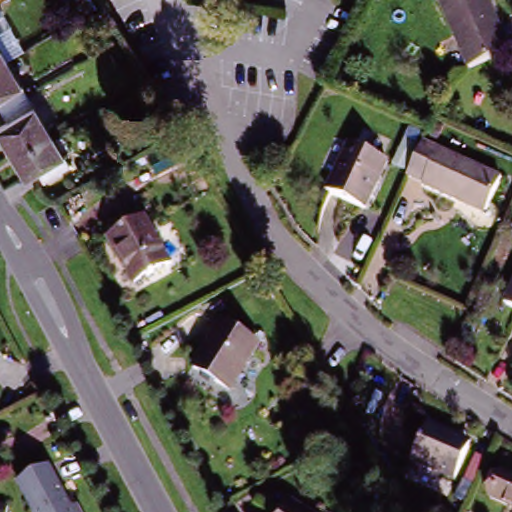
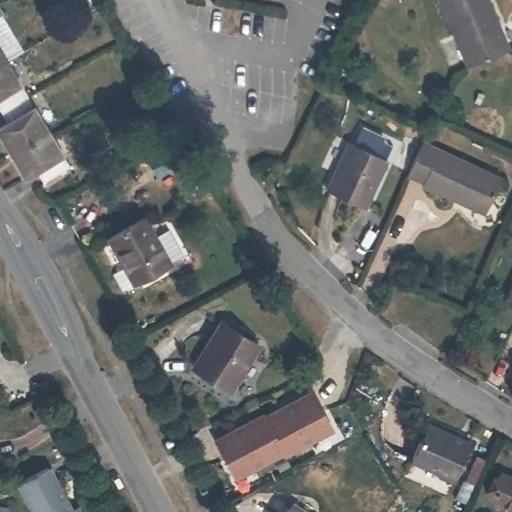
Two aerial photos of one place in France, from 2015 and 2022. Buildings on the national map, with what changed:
unchanged [(501,54),(466,69),(437,0),(487,0),(499,29),(508,51),(501,54)]
unchanged [(0,65),(0,52),(5,62),(0,65)]
unchanged [(0,135),(0,128),(7,124),(0,112),(0,111),(0,65),(5,62),(20,86),(26,96),(34,108),(48,131),(11,154),(0,135)]
unchanged [(37,172),(26,178),(11,154),(48,131),(63,156),(70,167),(44,183),(37,172)]
unchanged [(360,209),(322,191),(346,141),(384,160),(360,209)]
unchanged [(420,187),(422,184),(408,178),(425,144),(438,150),(501,179),(486,211),(483,217),(455,203),(420,187)]
unchanged [(110,238),(145,219),(170,265),(135,284),(110,238)]
unchanged [(498,309),(512,279),(512,315),(498,309)]
unchanged [(256,348),(230,393),(193,372),(220,326),(256,348)]
new [(334,431),(285,457),(283,455),(235,479),(212,439),(263,411),(265,414),(311,389),(334,431)]
unchanged [(412,464),(427,426),(456,440),(472,447),(470,450),(455,484),(412,464)]
unchanged [(61,475),(77,504),(85,507),(88,512),(41,512),(30,492),(32,491),(24,475),(52,460),(60,476),(61,475)]
unchanged [(512,512),(487,501),(500,475),(512,480),(512,512)]
unchanged [(294,512),(295,510),(298,512),(294,512)]

